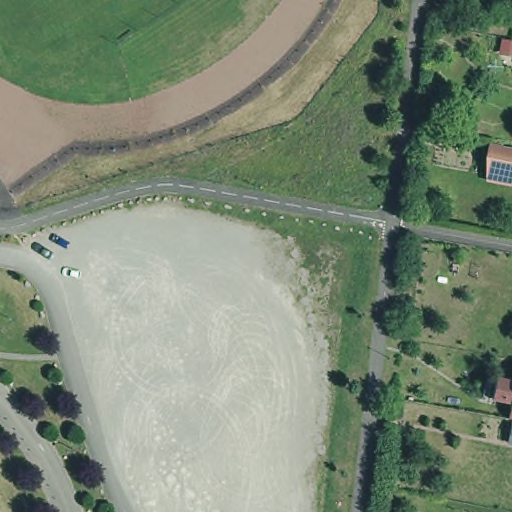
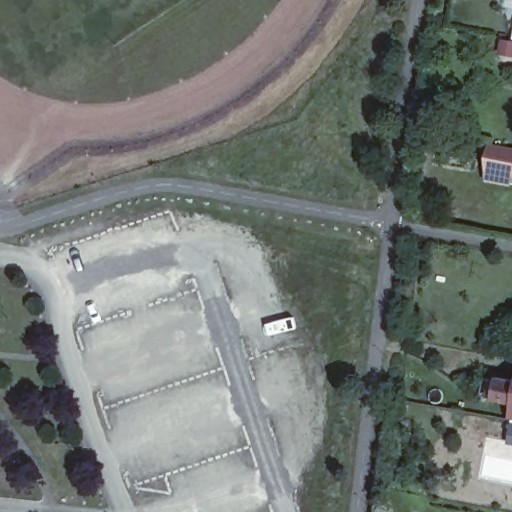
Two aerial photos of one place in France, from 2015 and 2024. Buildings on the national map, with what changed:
unchanged [(512,148),(512,181),(511,185),(484,180),(483,153),(488,144),(512,148)]
unchanged [(494,395),(497,375),(512,377),(512,399),(494,395)]
unchanged [(510,415),(512,404),(512,415),(510,415)]

